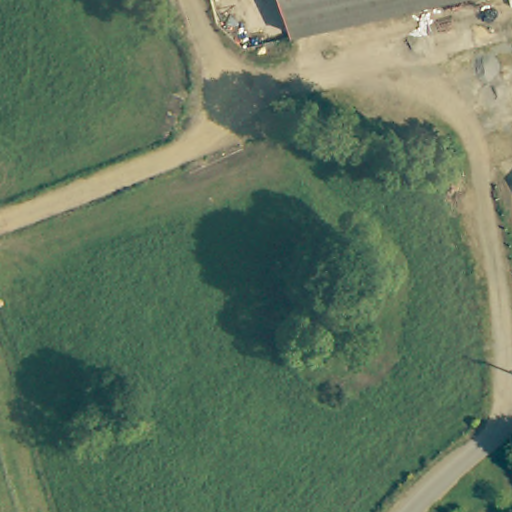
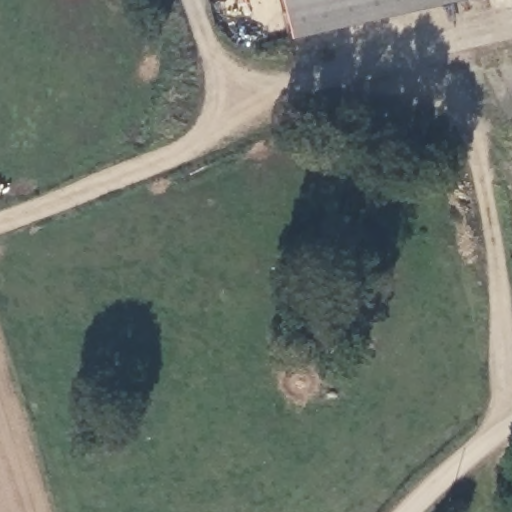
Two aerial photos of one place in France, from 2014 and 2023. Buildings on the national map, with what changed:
unchanged [(284,0),(469,0),(295,44),(284,0)]

